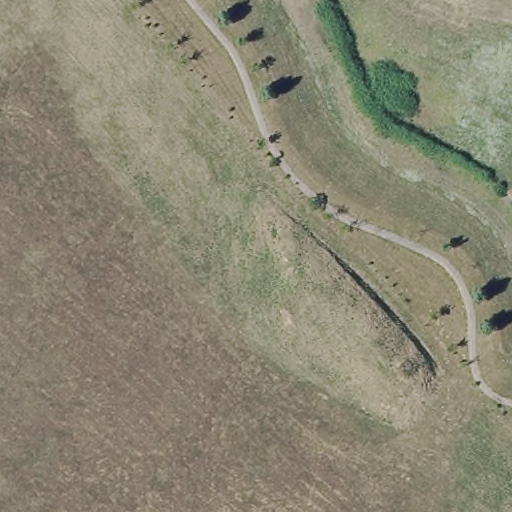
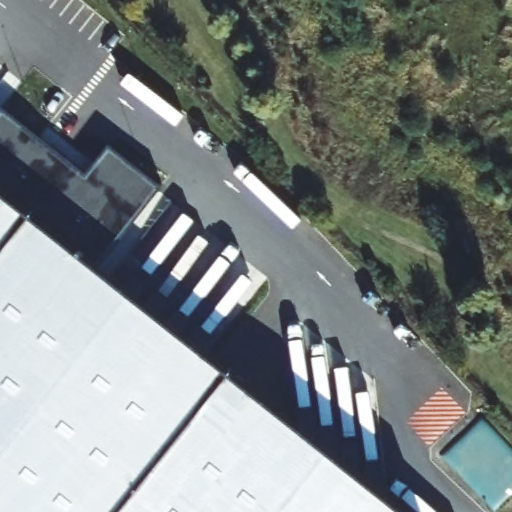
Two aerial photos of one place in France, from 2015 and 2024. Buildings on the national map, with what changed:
new [(85,174),(109,146),(158,186),(93,265),(0,190),(0,113),(3,109),(85,174)]
new [(402,512),(0,512),(0,190),(402,512)]

